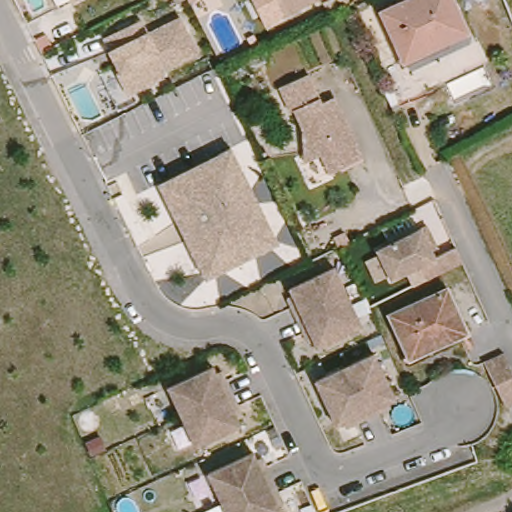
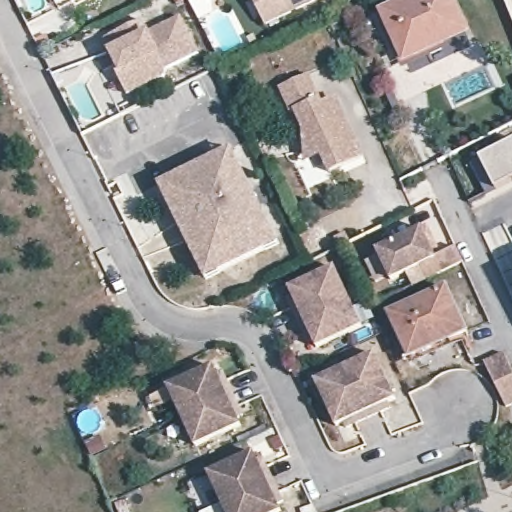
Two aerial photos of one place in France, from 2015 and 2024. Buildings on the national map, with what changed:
new [(188,0),(201,0),(191,5),(188,0)]
unchanged [(264,29),(249,0),(276,0),(286,19),(264,29)]
unchanged [(276,0),(322,0),(286,19),(276,0)]
unchanged [(407,60),(384,9),(405,0),(457,0),(472,31),(407,60)]
unchanged [(107,43),(143,24),(150,38),(182,21),(200,55),(168,71),(166,80),(131,99),(119,77),(124,75),(115,57),(107,43)]
unchanged [(364,157),(332,173),(322,154),(305,153),(304,129),(297,115),(293,117),(279,89),(307,75),(321,103),(325,101),(339,106),(364,157)]
new [(512,140),(512,179),(495,189),(479,157),(512,140)]
unchanged [(155,186),(227,150),(273,246),(203,282),(155,186)]
unchanged [(425,229),(440,258),(456,250),(462,264),(453,268),(427,280),(420,269),(391,283),(377,253),(425,229)]
unchanged [(354,299),(304,323),(294,301),(298,299),(295,291),(340,270),(354,299)]
unchanged [(467,333),(410,360),(389,315),(447,289),(467,333)]
unchanged [(354,299),(367,329),(322,349),(319,342),(314,344),(304,323),(354,299)]
unchanged [(503,362),(512,381),(512,402),(500,407),(490,384),(479,363),(490,358),(499,354),(503,362)]
unchanged [(375,355),(397,400),(389,404),(392,409),(370,419),(346,369),(375,355)]
unchanged [(211,368),(214,376),(219,374),(230,395),(179,419),(165,389),(211,368)]
unchanged [(349,429),(346,424),(338,427),(317,382),(346,369),(370,419),(349,429)]
unchanged [(230,395),(240,417),(235,419),(238,427),(193,448),(179,419),(230,395)]
unchanged [(251,454),(254,462),(260,459),(270,481),(220,504),(206,475),(251,454)]
unchanged [(270,481),(280,503),(275,506),(278,512),(223,512),(220,504),(270,481)]

